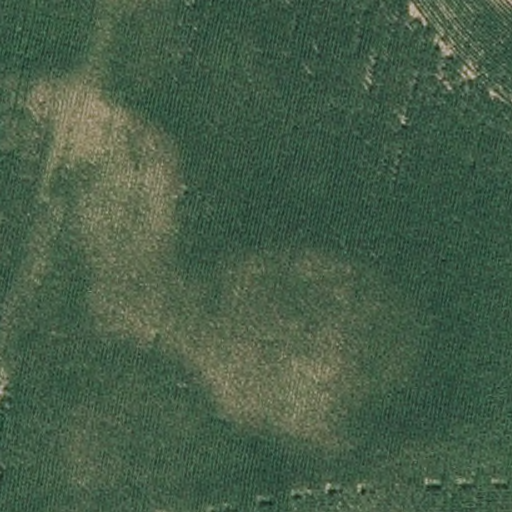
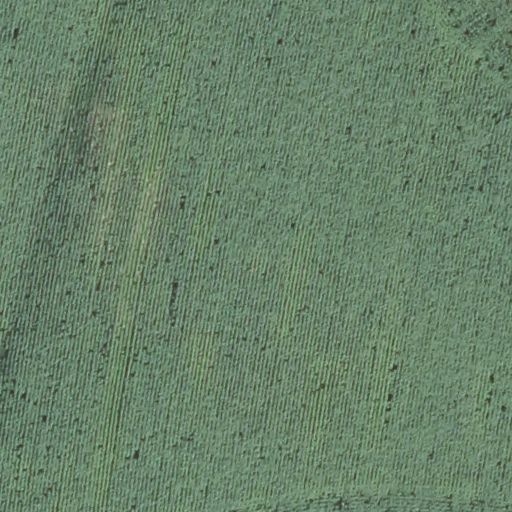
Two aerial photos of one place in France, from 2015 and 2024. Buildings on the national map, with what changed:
[]

